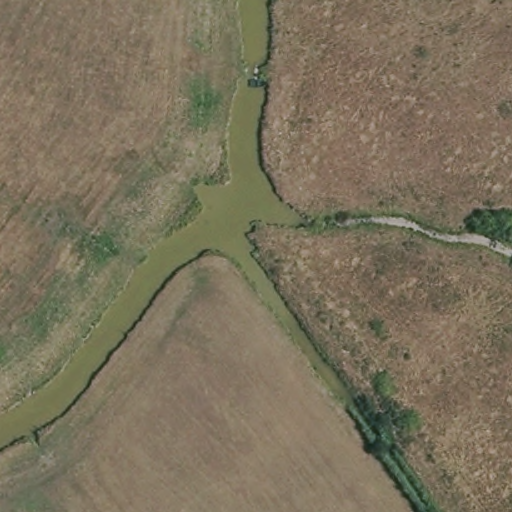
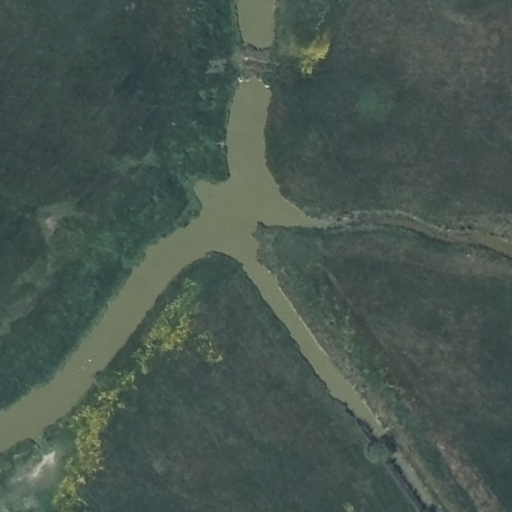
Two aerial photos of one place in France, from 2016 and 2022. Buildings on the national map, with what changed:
[]

